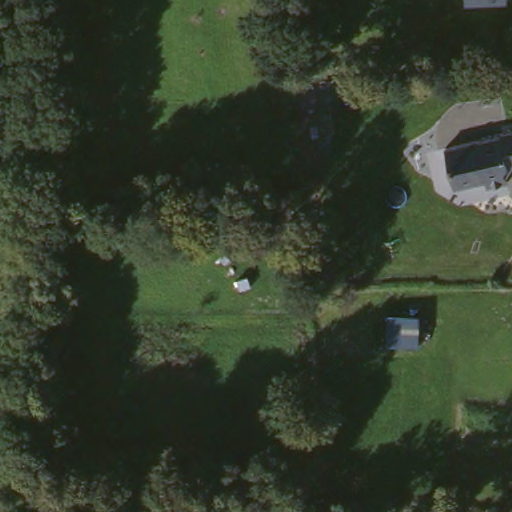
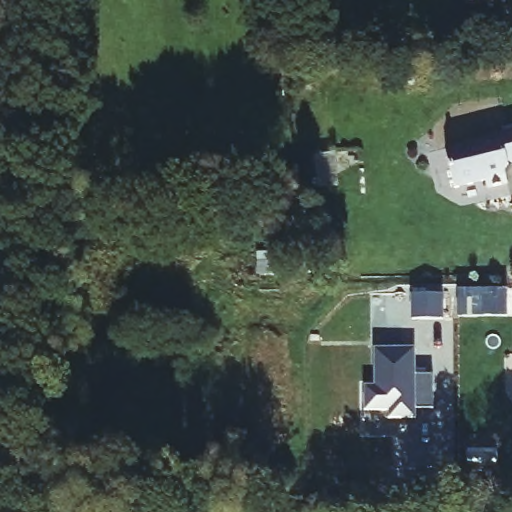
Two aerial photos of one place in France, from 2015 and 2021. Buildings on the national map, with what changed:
unchanged [(512,170),(505,173),(507,180),(486,185),(483,179),(454,187),(442,148),(512,127),(512,165),(510,165),(512,170)]
new [(412,292),(442,292),(442,319),(412,319),(412,292)]
new [(431,409),(414,409),(414,417),(387,417),(387,409),(363,409),(364,384),(374,384),(374,346),(414,346),(414,378),(432,377),(431,409)]

